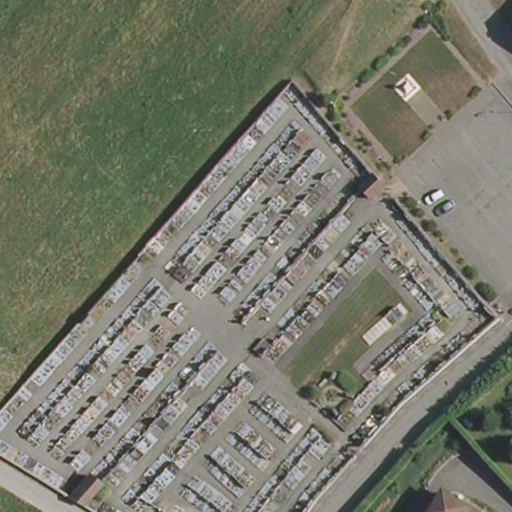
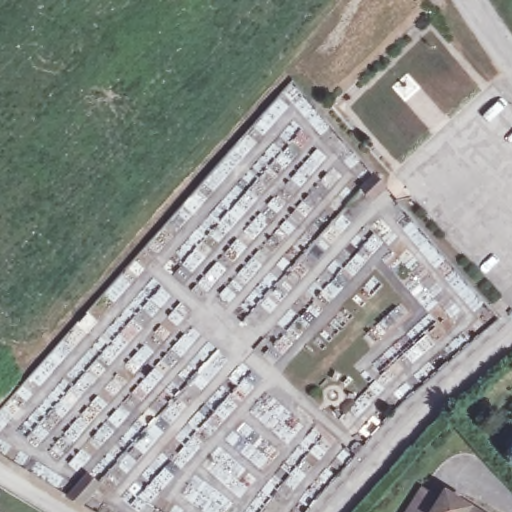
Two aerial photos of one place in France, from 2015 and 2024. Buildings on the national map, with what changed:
unchanged [(419,491),(438,503),(432,512),(406,512),(419,491)]
unchanged [(438,503),(444,493),(473,512),(432,512),(438,503)]

